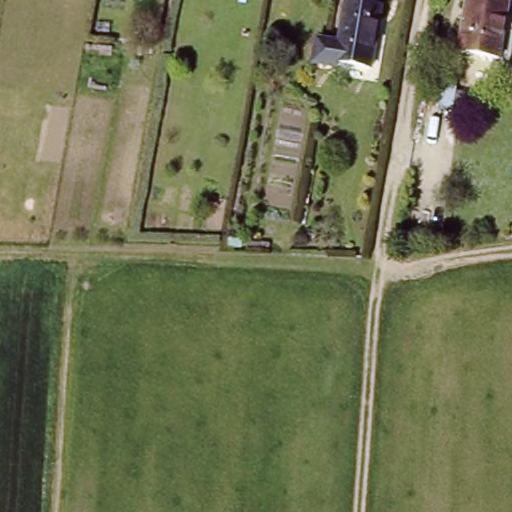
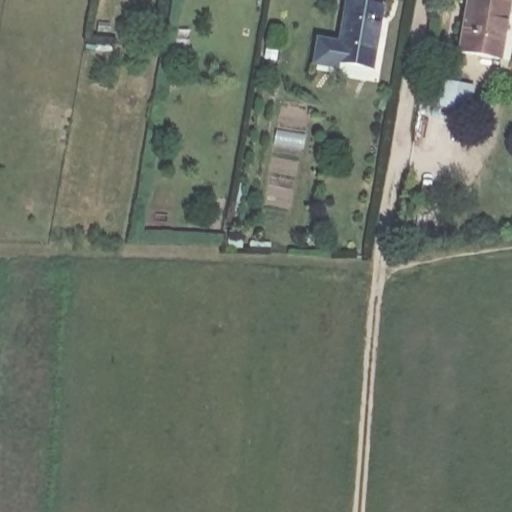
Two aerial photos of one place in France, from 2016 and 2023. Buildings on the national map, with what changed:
unchanged [(336,59),(345,0),(357,0),(382,4),(372,65),(336,59)]
unchanged [(465,46),(472,0),(512,0),(512,14),(505,54),(465,46)]
unchanged [(442,79),(459,83),(455,109),(438,106),(442,79)]

